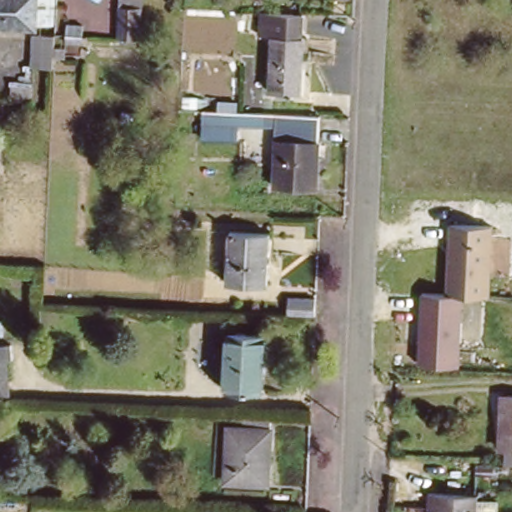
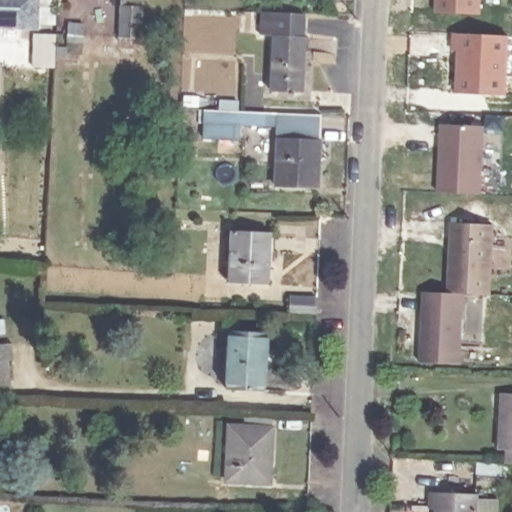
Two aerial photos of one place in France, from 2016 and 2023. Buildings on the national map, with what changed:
unchanged [(0,0),(16,0),(55,2),(55,10),(53,37),(0,35),(0,0)]
new [(480,0),(479,13),(433,10),(434,0),(480,0)]
unchanged [(116,40),(118,3),(143,4),(141,41),(116,40)]
unchanged [(260,13),(295,14),(301,15),(300,36),(302,36),(299,93),(269,92),(272,35),(259,35),(260,13)]
unchanged [(83,40),(68,39),(69,21),(84,22),(83,40)]
new [(458,50),(453,50),(455,34),(507,36),(504,95),(457,94),(458,50)]
unchanged [(30,76),(31,46),(53,47),(52,77),(30,76)]
unchanged [(323,115),(320,192),(271,189),(275,131),(241,128),(241,142),(200,138),(202,109),(323,115)]
new [(439,125),(483,127),(480,193),(435,191),(439,125)]
unchanged [(494,224),(490,296),(445,294),(449,222),(494,224)]
unchanged [(226,231),(262,232),(260,284),(224,283),(226,231)]
unchanged [(423,292),(445,294),(463,295),(460,362),(420,361),(423,292)]
unchanged [(295,313),(320,314),(320,326),(301,326),(295,325),(295,313)]
unchanged [(264,335),(262,392),(225,390),(227,333),(264,335)]
unchanged [(497,446),(499,423),(500,392),(509,393),(512,393),(512,447),(497,446)]
unchanged [(223,427),(238,427),(240,412),(242,412),(267,413),(263,483),(220,482),(223,427)]
unchanged [(476,512),(427,512),(427,497),(476,499),(476,512)]

